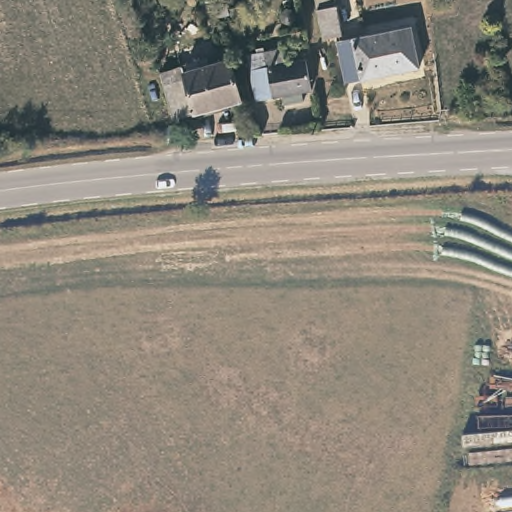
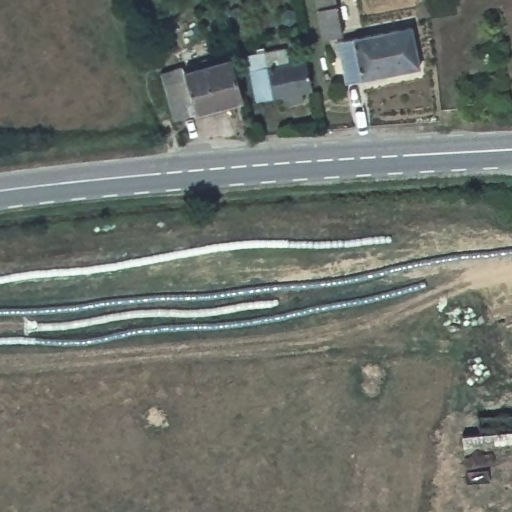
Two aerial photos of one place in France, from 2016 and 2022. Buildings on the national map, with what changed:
unchanged [(342,37),(325,41),(317,1),(322,0),(334,0),(342,37)]
unchanged [(418,71),(345,85),(338,44),(412,32),(418,71)]
unchanged [(290,64),(310,61),(316,91),(261,101),(252,55),(286,48),(290,64)]
unchanged [(201,66),(216,62),(217,67),(235,62),(245,101),(185,116),(179,117),(171,80),(168,71),(189,65),(192,74),(203,71),(201,66)]

